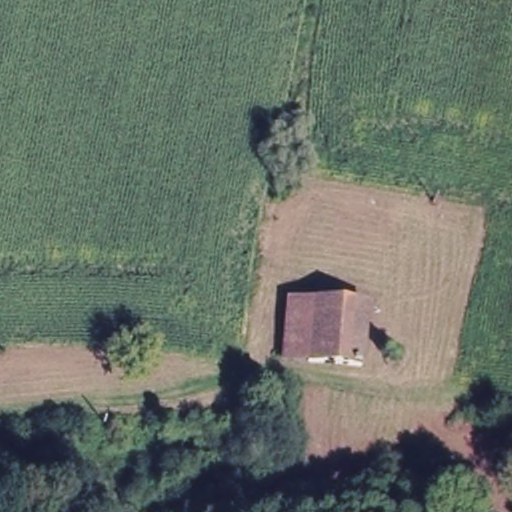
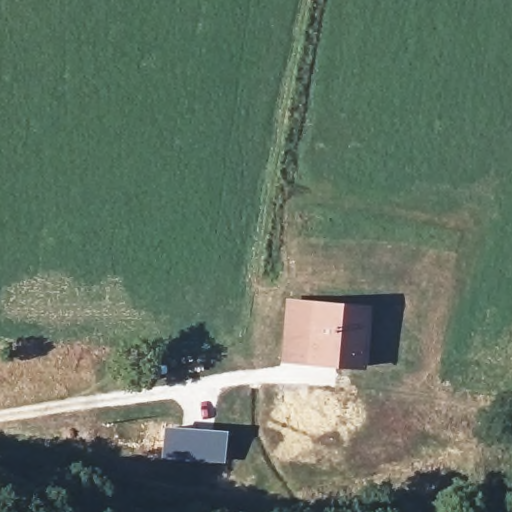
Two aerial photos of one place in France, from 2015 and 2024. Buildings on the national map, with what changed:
unchanged [(284,356),(293,298),(368,306),(360,365),(284,356)]
new [(162,425),(226,430),(224,461),(160,456),(162,425)]

